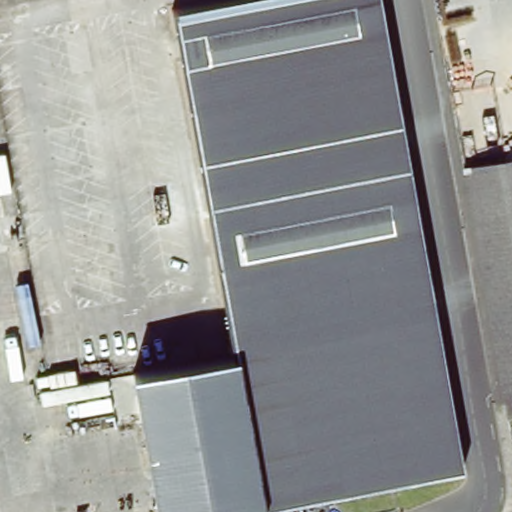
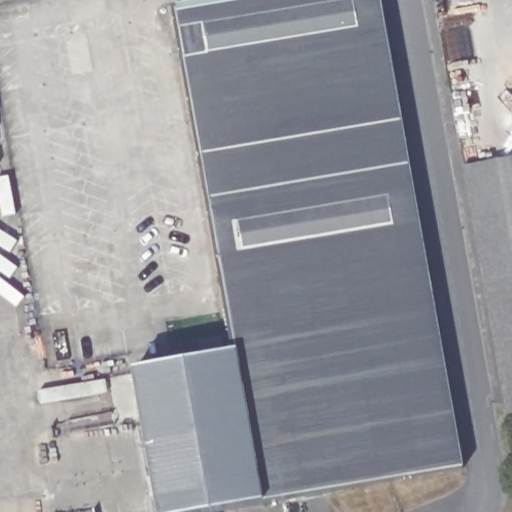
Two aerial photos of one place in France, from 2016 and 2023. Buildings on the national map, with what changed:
unchanged [(463,464),(263,499),(192,512),(160,512),(136,373),(235,355),(178,7),(218,0),(382,0),(463,464)]
unchanged [(512,163),(512,203),(505,164),(512,163)]
unchanged [(488,302),(465,170),(505,164),(512,203),(512,417),(508,417),(488,302)]

